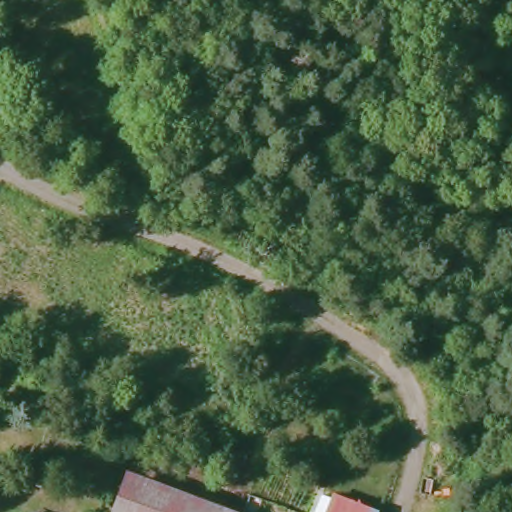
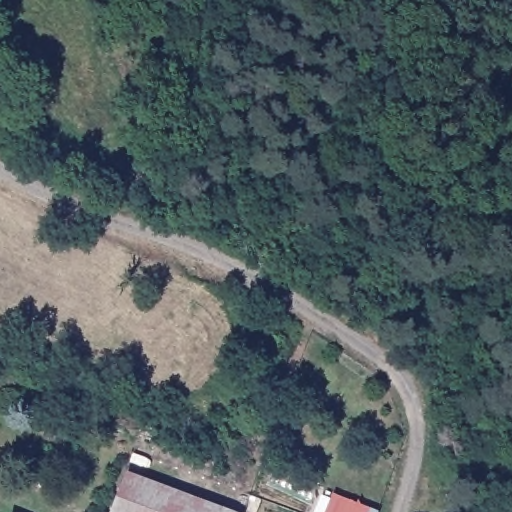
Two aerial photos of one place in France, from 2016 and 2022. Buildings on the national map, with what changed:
unchanged [(117,502),(128,472),(235,512),(113,512),(117,502)]

